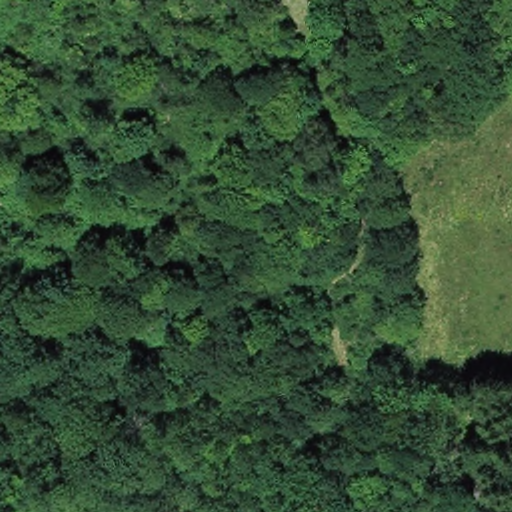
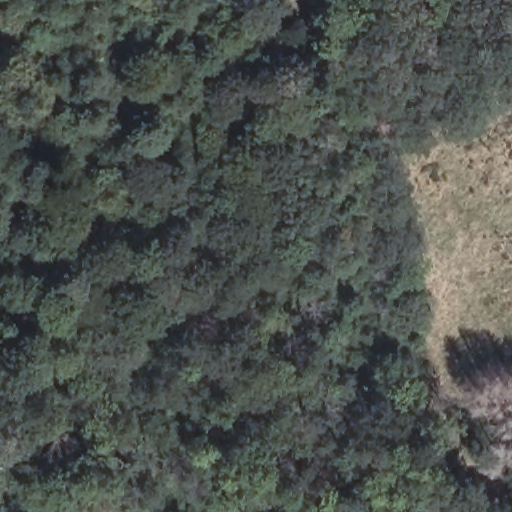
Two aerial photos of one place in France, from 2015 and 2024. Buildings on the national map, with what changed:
[]

